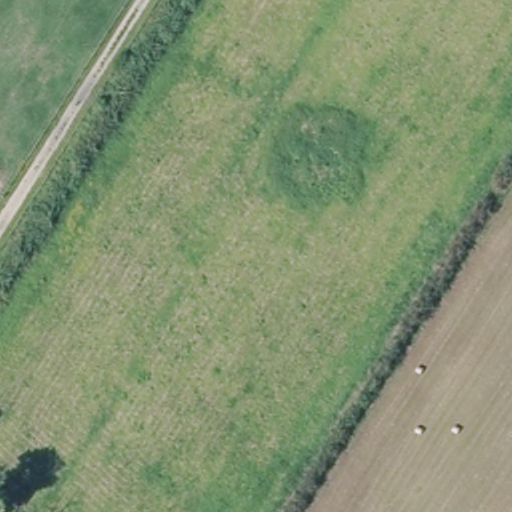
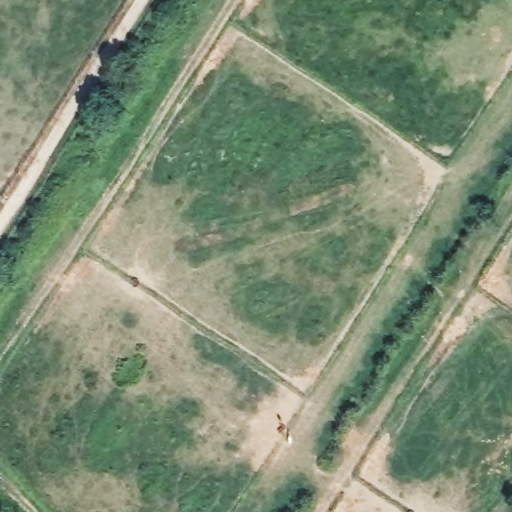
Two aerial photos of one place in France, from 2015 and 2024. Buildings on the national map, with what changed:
[]

